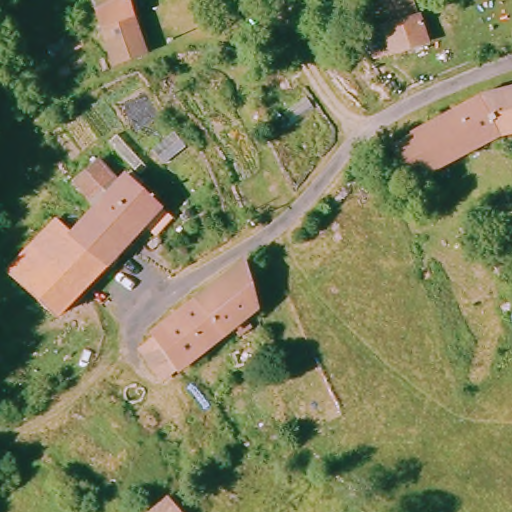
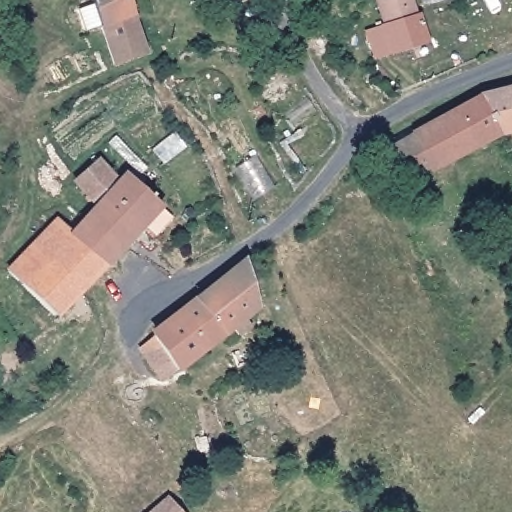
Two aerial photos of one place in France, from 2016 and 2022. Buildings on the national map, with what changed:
unchanged [(94,0),(128,0),(146,62),(114,73),(94,0)]
unchanged [(421,23),(424,22),(431,47),(402,59),(401,57),(383,64),(374,38),(393,30),(384,7),(401,0),(413,0),(421,23)]
unchanged [(477,100),(512,90),(512,131),(499,134),(477,100)]
unchanged [(477,100),(499,134),(424,169),(408,166),(394,146),(477,100)]
unchanged [(56,327),(7,279),(55,227),(75,240),(101,212),(72,191),(86,182),(96,176),(123,192),(129,185),(161,217),(143,235),(56,327)]
unchanged [(243,268),(258,317),(180,377),(154,343),(243,268)]
unchanged [(164,512),(171,506),(176,512),(164,512)]

